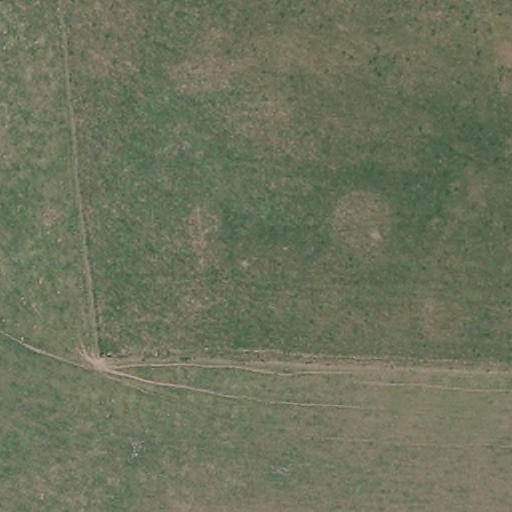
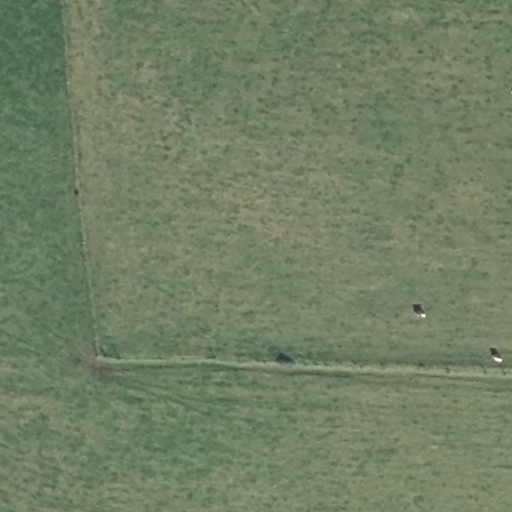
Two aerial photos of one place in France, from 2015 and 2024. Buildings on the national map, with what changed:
[]

